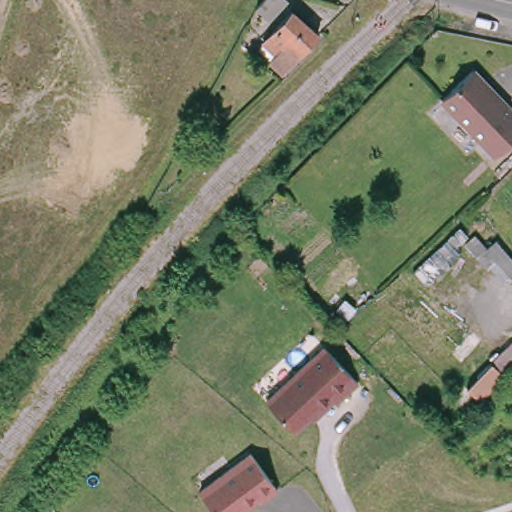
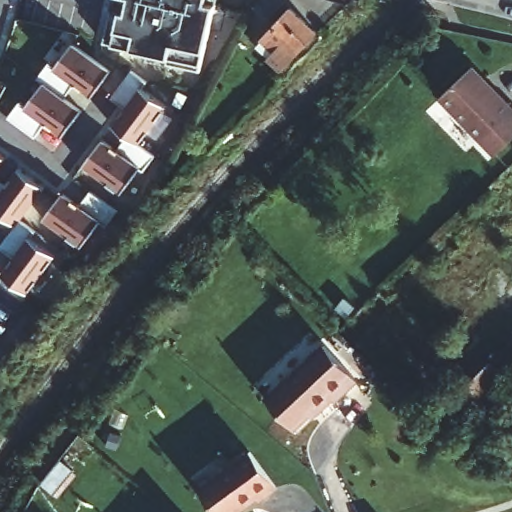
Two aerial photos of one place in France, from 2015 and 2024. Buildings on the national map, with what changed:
new [(206,2),(214,5),(201,71),(166,65),(167,57),(107,44),(115,0),(207,0),(206,2)]
unchanged [(268,20),(256,9),(263,0),(286,0),(268,20)]
unchanged [(261,37),(268,29),(271,32),(291,11),(318,36),(284,72),(258,48),(264,40),(261,37)]
new [(110,72),(91,98),(76,86),(65,101),(80,112),(63,137),(46,125),(36,140),(8,119),(18,104),(26,109),(44,82),(38,79),(48,65),(55,70),(72,44),(110,72)]
unchanged [(512,105),(512,136),(496,151),(441,94),(472,64),(512,105)]
new [(146,84),(142,90),(166,108),(138,144),(154,157),(143,174),(139,171),(121,195),(83,167),(102,142),(117,152),(127,137),(112,127),(125,110),(110,99),(131,72),(146,84)]
new [(4,160),(0,165),(0,156),(4,160)]
new [(7,187),(19,170),(44,189),(20,222),(35,234),(31,238),(55,257),(26,293),(2,276),(13,258),(0,249),(0,247),(15,227),(0,215),(0,182),(7,187)]
new [(79,208),(90,194),(117,214),(104,229),(98,225),(80,249),(43,220),(63,195),(79,208)]
unchanged [(351,377),(295,432),(263,398),(321,343),(351,377)]
unchanged [(234,512),(214,512),(198,490),(249,454),(271,487),(234,512)]

